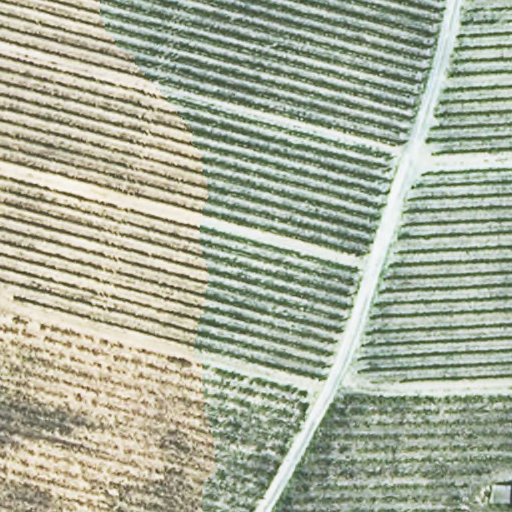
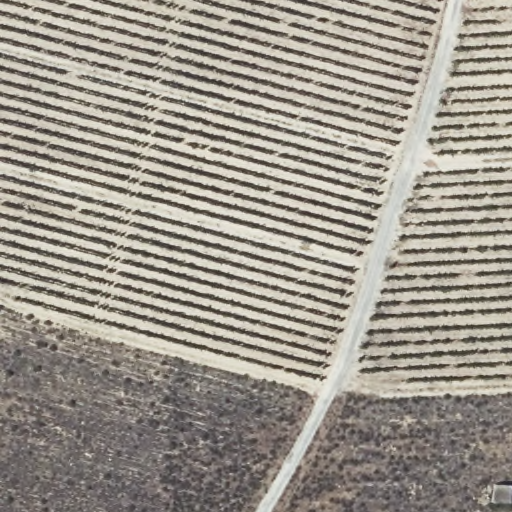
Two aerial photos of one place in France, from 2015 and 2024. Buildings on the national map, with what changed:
unchanged [(497,482),(512,483),(512,504),(495,502),(497,482)]

